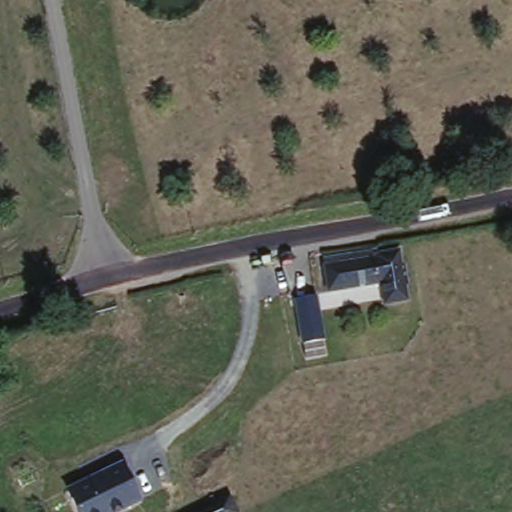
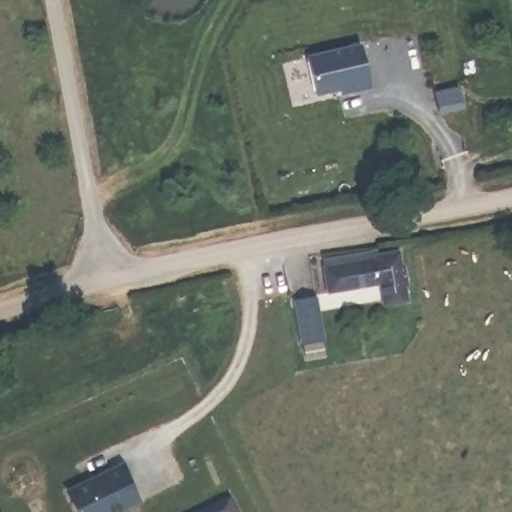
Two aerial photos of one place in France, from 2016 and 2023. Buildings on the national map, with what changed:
new [(360,50),(367,89),(338,96),(337,92),(312,97),(304,61),(360,50)]
unchanged [(375,281),(336,292),(329,295),(321,262),(367,252),(368,255),(392,249),(396,257),(401,258),(407,281),(402,282),(407,301),(387,306),(382,308),(375,281)]
unchanged [(300,296),(312,292),(323,332),(304,337),(292,298),(300,296)]
unchanged [(122,461),(141,502),(121,512),(75,512),(64,488),(122,461)]
unchanged [(233,511),(230,512),(180,512),(227,491),(233,511)]

